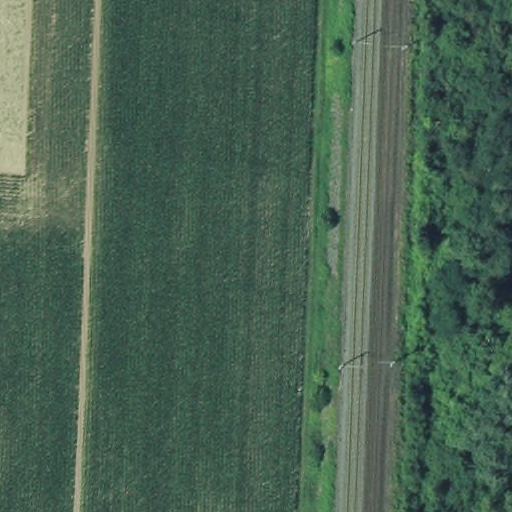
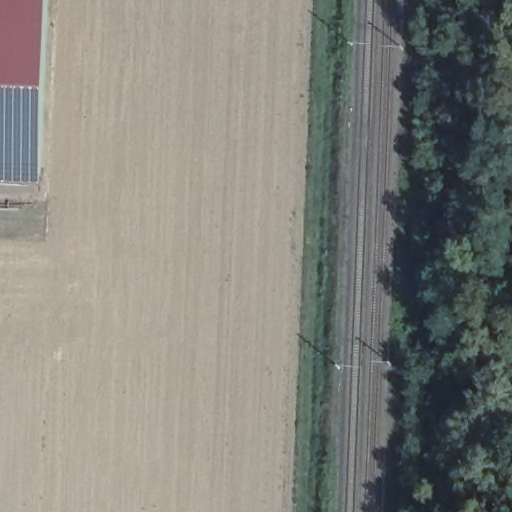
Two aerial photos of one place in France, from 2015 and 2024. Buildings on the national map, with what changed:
new [(0,184),(0,0),(47,0),(39,186),(0,184)]

